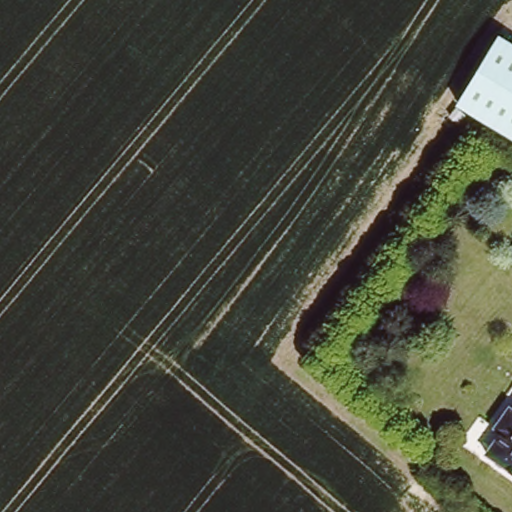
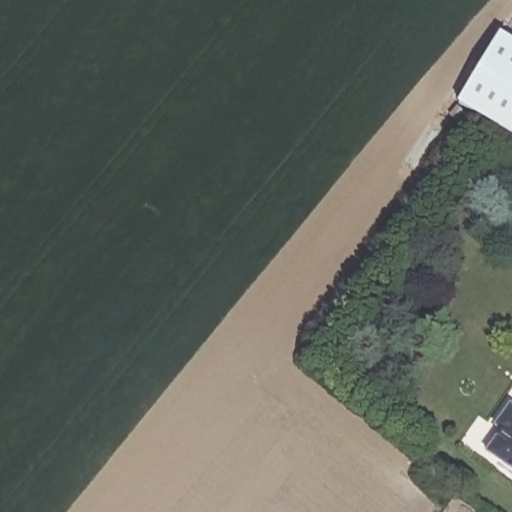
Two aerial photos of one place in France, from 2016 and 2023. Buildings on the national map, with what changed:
unchanged [(460,92),(509,27),(512,30),(512,132),(460,92)]
unchanged [(483,447),(499,427),(496,424),(512,408),(512,469),(483,447)]

